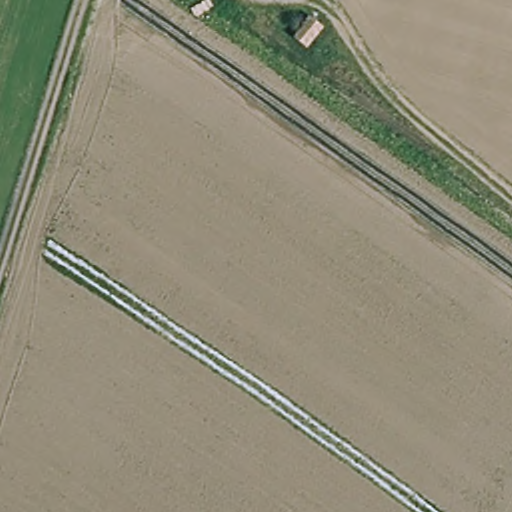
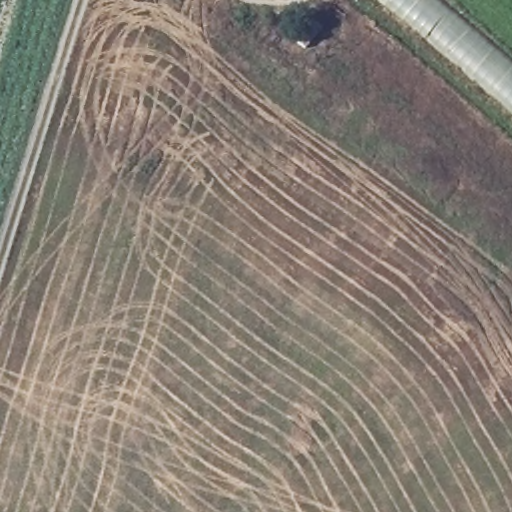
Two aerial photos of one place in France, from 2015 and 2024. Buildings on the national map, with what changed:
new [(378,0),(444,0),(512,59),(512,114),(378,0)]
unchanged [(294,37),(316,15),(329,27),(308,47),(294,37)]

